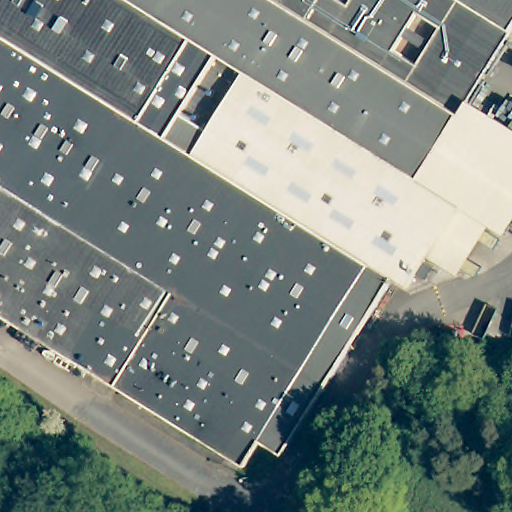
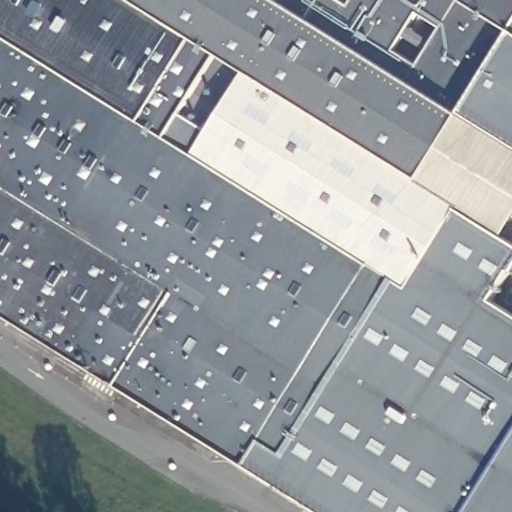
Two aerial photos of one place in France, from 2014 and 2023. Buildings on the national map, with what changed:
unchanged [(512,37),(473,99),(512,122),(512,228),(509,233),(494,224),(464,273),(433,254),(412,287),(397,278),(288,455),(265,441),(250,466),(0,310),(0,0),(512,0),(512,37)]
new [(512,37),(512,122),(473,99),(512,37)]
new [(265,441),(288,455),(397,278),(412,287),(433,254),(464,273),(494,224),(509,233),(512,235),(512,268),(491,299),(512,312),(512,512),(323,512),(250,466),(265,441)]

